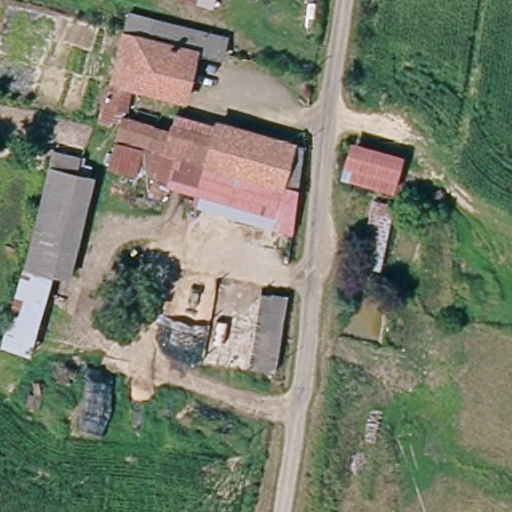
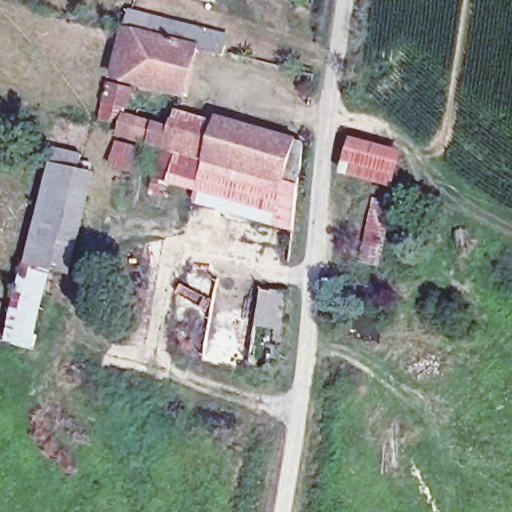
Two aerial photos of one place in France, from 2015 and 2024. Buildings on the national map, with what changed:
unchanged [(209,0),(213,0),(213,1),(209,0)]
unchanged [(115,79),(129,31),(135,11),(191,24),(223,32),(220,52),(200,47),(186,99),(115,79)]
unchanged [(127,95),(124,113),(99,107),(103,89),(112,91),(127,95)]
unchanged [(302,187),(207,165),(117,141),(119,132),(121,122),(170,136),(172,127),(213,138),(216,125),(308,147),(302,187)]
unchanged [(342,176),(348,137),(402,151),(392,189),(342,176)]
unchanged [(70,276),(55,272),(23,265),(47,163),(94,175),(70,276)]
unchanged [(294,233),(196,208),(207,165),(302,187),(294,233)]
unchanged [(355,263),(371,196),(392,200),(379,268),(355,263)]
unchanged [(23,265),(55,272),(34,352),(3,342),(23,265)]
unchanged [(260,288),(290,290),(276,367),(249,365),(260,288)]

